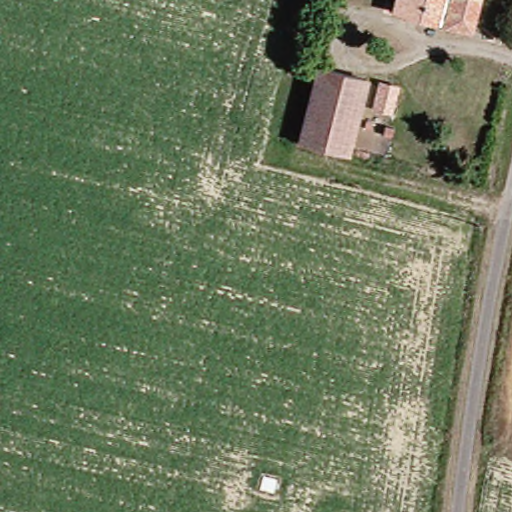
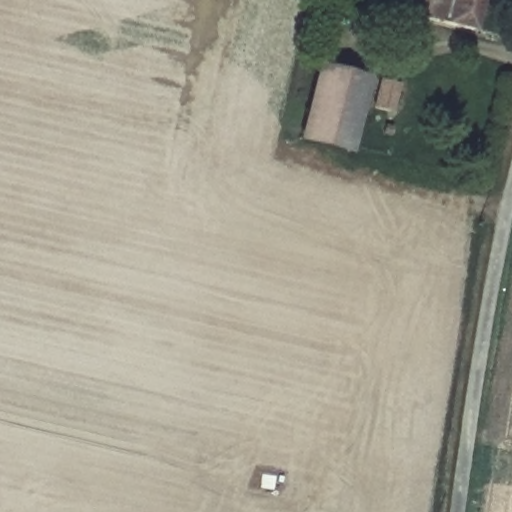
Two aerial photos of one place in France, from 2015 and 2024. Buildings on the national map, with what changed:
unchanged [(383,14),(387,0),(472,0),(465,22),(383,14)]
unchanged [(294,139),(308,67),(355,77),(339,150),(294,139)]
unchanged [(399,96),(390,129),(376,126),(382,91),(399,96)]

